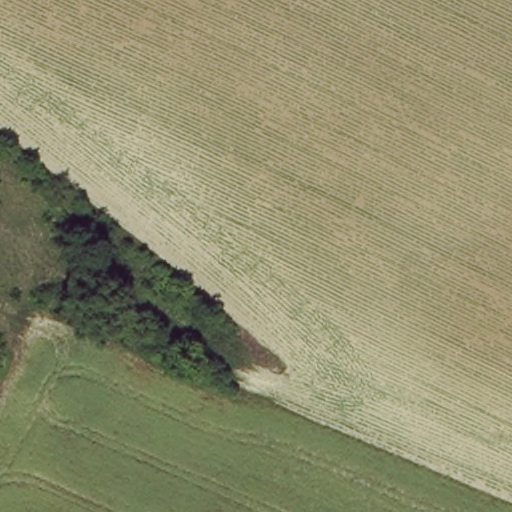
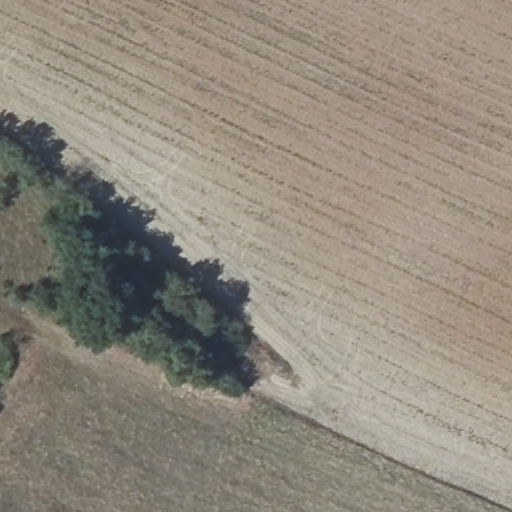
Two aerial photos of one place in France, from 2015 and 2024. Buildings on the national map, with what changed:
[]

